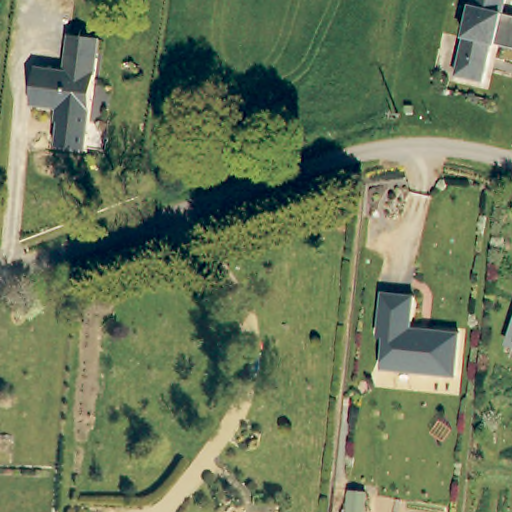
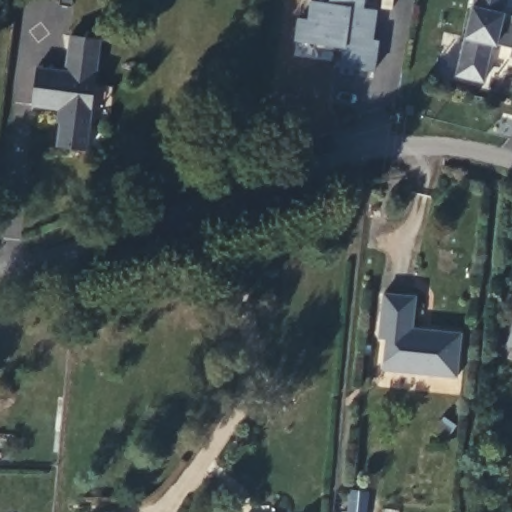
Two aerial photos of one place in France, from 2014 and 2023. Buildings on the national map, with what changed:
new [(364,7),(378,10),(374,40),(380,41),(374,74),(338,68),(342,49),(293,40),(295,19),(307,20),(309,1),(328,4),(328,0),(365,0),(364,7)]
unchanged [(498,5),(512,8),(512,40),(488,35),(480,74),(453,68),(467,0),(499,0),(498,5)]
unchanged [(64,72),(66,54),(68,36),(99,40),(89,118),(69,115),(69,111),(29,106),(34,68),(64,72)]
unchanged [(413,290),(410,326),(434,328),(435,326),(459,327),(456,371),(420,367),(420,364),(381,361),(384,324),(378,324),(381,288),(413,290)]
unchanged [(509,348),(512,340),(512,349),(509,348)]
demolished [(512,370),(512,412),(489,412),(492,370),(512,370)]
unchanged [(364,512),(347,512),(347,496),(364,497),(364,512)]

